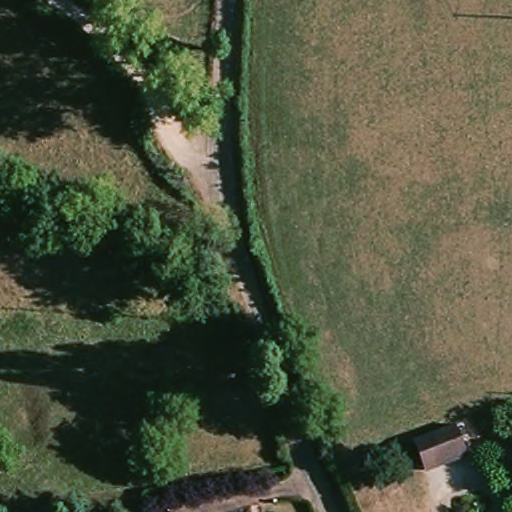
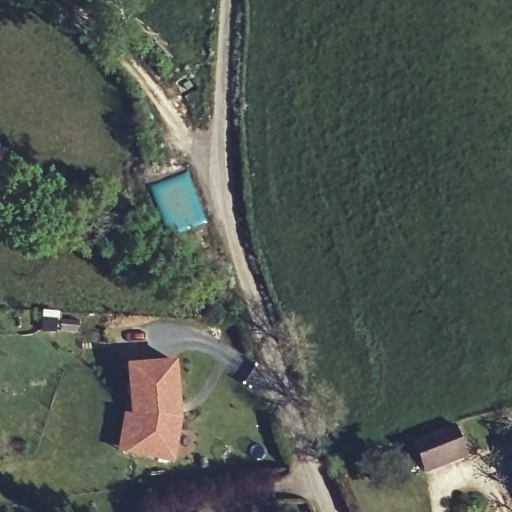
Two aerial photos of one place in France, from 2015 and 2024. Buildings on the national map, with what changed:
new [(177,360),(183,418),(175,461),(117,452),(123,413),(130,415),(126,365),(177,360)]
unchanged [(459,452),(426,468),(415,443),(447,428),(459,452)]
unchanged [(512,452),(512,454),(511,452),(512,452)]
unchanged [(512,474),(512,478),(510,475),(512,474)]

